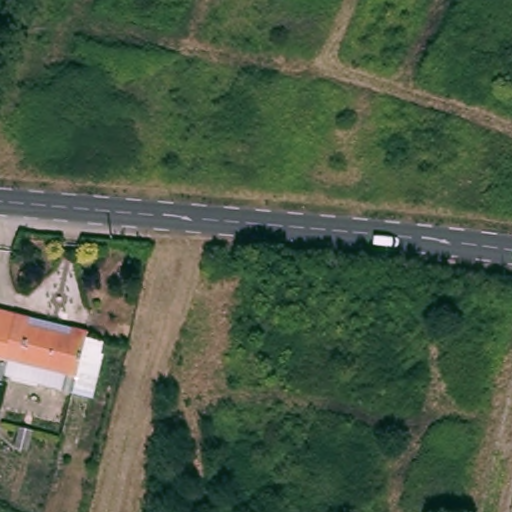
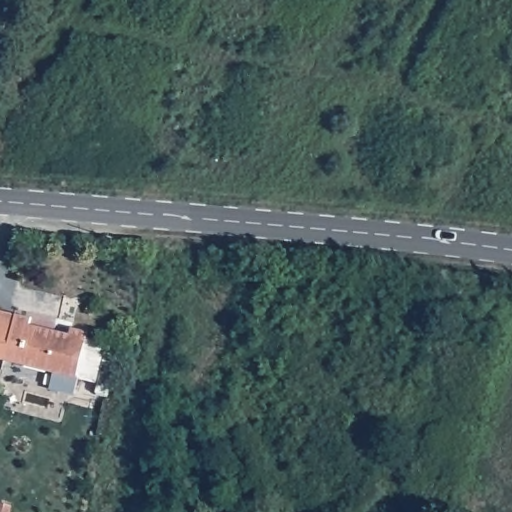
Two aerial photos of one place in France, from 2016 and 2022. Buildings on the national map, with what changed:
unchanged [(94,332),(79,396),(67,393),(71,378),(57,376),(53,392),(11,382),(15,365),(0,361),(0,309),(94,332)]

